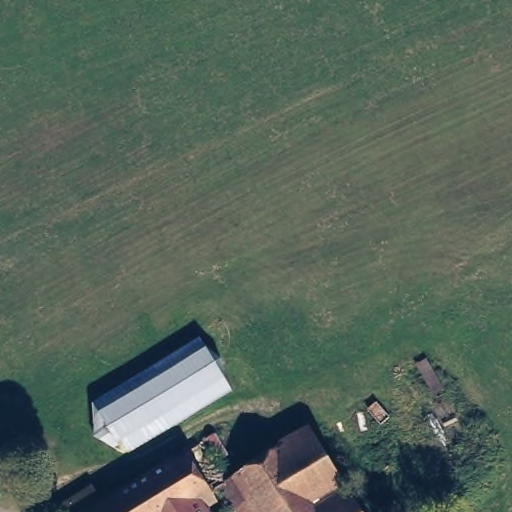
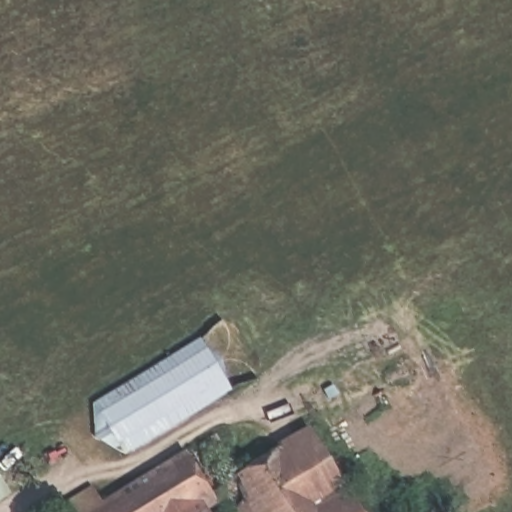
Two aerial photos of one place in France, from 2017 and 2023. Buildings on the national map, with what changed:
unchanged [(91,441),(91,406),(200,340),(232,391),(125,459),(91,441)]
unchanged [(203,443),(224,478),(311,426),(363,512),(229,512),(223,501),(202,512),(50,512),(93,487),(103,502),(203,443)]
unchanged [(13,493),(0,502),(0,474),(13,493)]

